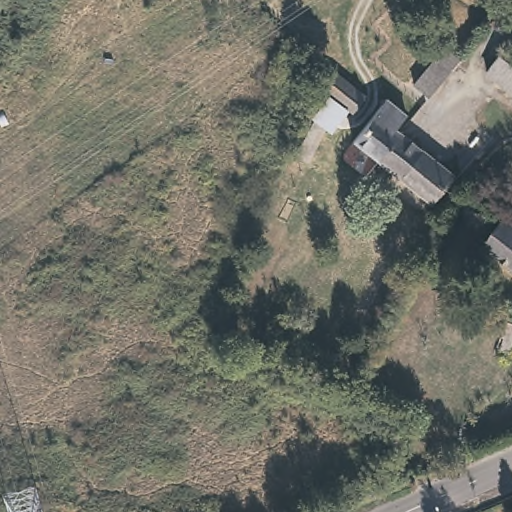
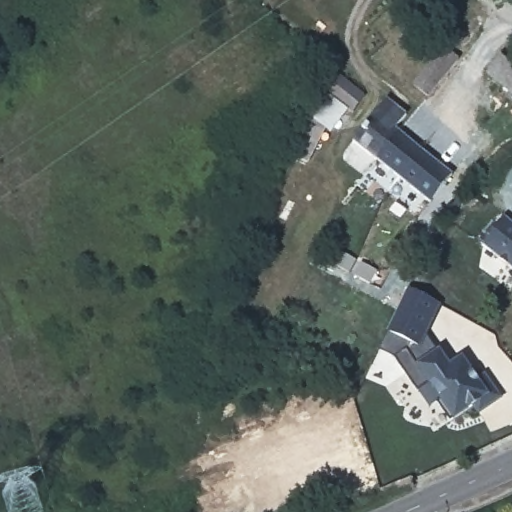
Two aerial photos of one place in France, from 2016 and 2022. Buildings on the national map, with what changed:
unchanged [(512,63),(512,91),(490,73),(504,56),(512,63)]
unchanged [(439,58),(454,71),(433,95),(418,82),(439,58)]
unchanged [(355,110),(328,89),(327,86),(336,75),(348,64),(365,96),(355,110)]
unchanged [(354,137),(388,96),(408,113),(398,125),(403,130),(380,157),(354,137)]
unchanged [(313,115),(323,121),(325,117),(341,126),(334,138),(322,131),(309,154),(297,148),(313,115)]
unchanged [(454,174),(433,201),(380,157),(403,130),(454,174)]
unchanged [(512,222),(512,265),(481,242),(501,213),(503,215),(512,222)]
new [(391,331),(410,290),(442,304),(426,335),(437,350),(441,348),(451,362),(464,354),(479,380),(486,373),(503,398),(479,415),(471,407),(454,420),(451,421),(437,402),(442,398),(431,383),(418,390),(396,358),(380,351),(391,331)]
demolished [(512,319),(512,355),(501,352),(503,344),(499,343),(507,317),(512,319)]

